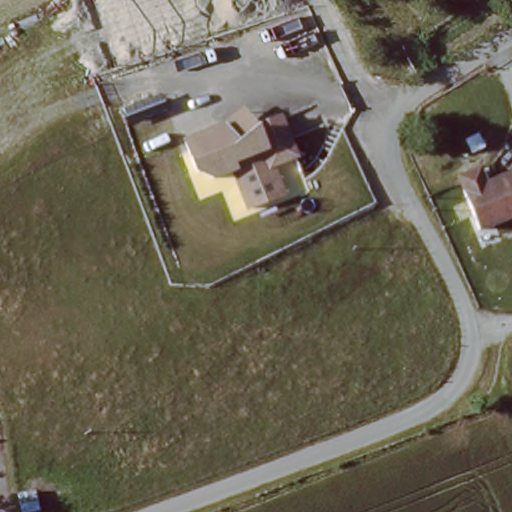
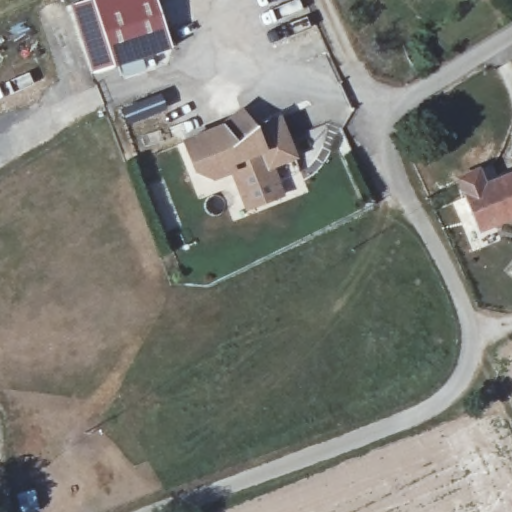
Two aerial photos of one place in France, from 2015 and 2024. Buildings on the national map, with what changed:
new [(173,47),(115,67),(94,73),(72,5),(84,0),(158,0),(173,47)]
unchanged [(257,124),(283,114),(300,159),(277,169),(287,195),(248,211),(235,173),(214,180),(191,170),(182,139),(223,123),(243,105),(257,124)]
unchanged [(512,179),(512,212),(478,227),(460,185),(506,165),(512,179)]

